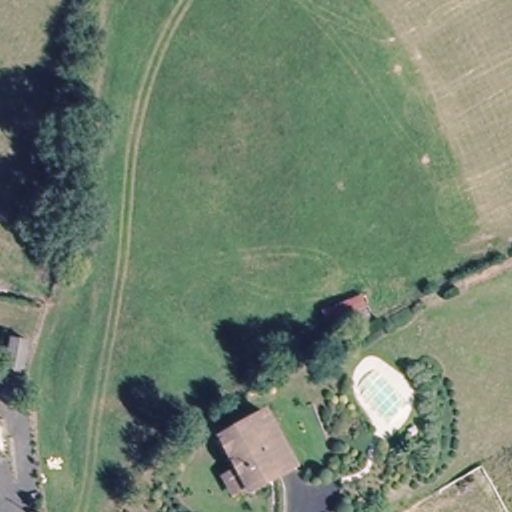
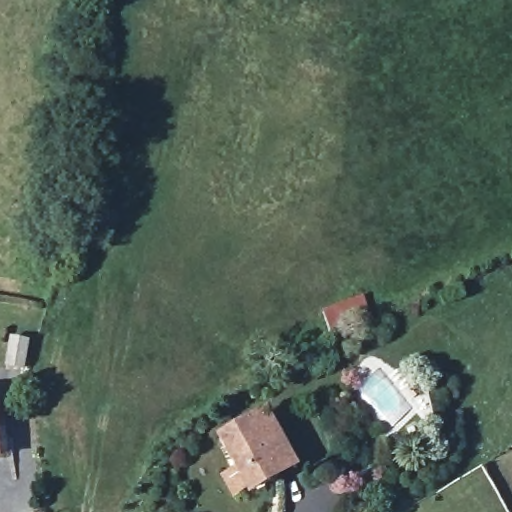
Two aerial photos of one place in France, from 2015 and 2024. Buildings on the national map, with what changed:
unchanged [(319,310),(364,295),(371,320),(327,330),(319,310)]
unchanged [(7,332),(36,340),(25,376),(2,363),(7,332)]
unchanged [(215,474),(227,466),(214,444),(257,416),(287,463),(263,477),(245,490),(232,500),(215,474)]
unchanged [(5,438),(0,439),(0,417),(2,417),(5,438)]

